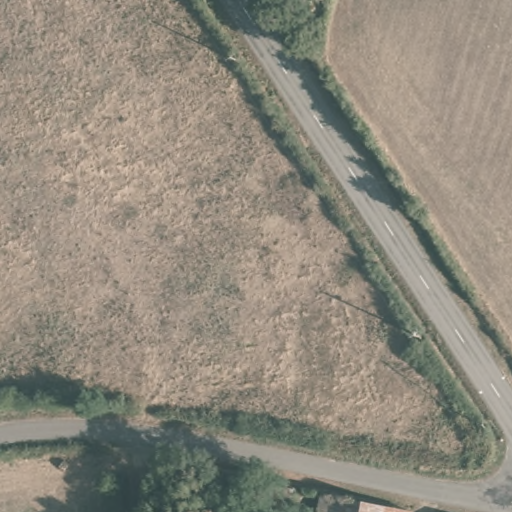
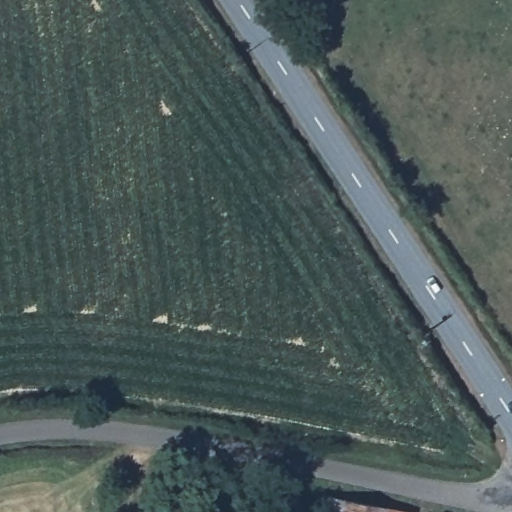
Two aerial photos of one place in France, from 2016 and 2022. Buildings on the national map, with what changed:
unchanged [(319,494),(382,504),(413,509),(412,512),(316,512),(319,494)]
unchanged [(439,511),(444,512),(438,512),(439,511)]

